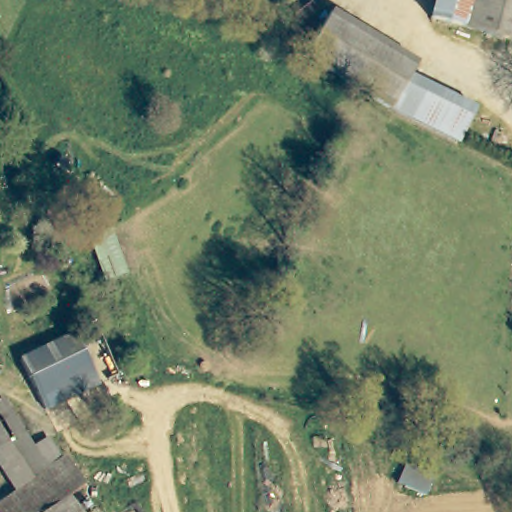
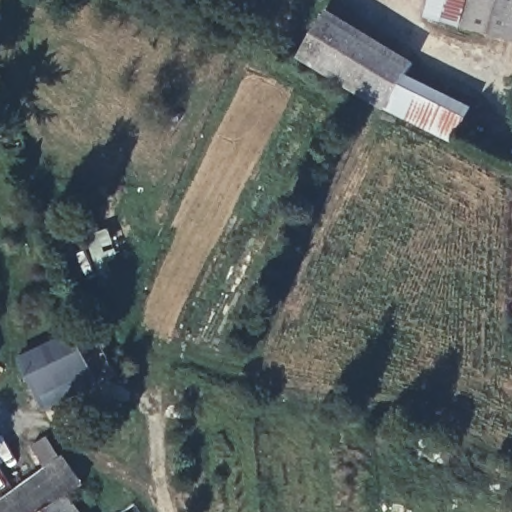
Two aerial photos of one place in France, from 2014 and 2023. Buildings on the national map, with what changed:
unchanged [(433,0),(512,0),(512,38),(429,15),(433,0)]
unchanged [(409,62),(396,84),(381,110),(350,91),(295,58),(323,11),(366,36),(409,62)]
unchanged [(449,144),(381,110),(396,84),(462,117),(449,144)]
unchanged [(68,334),(91,385),(37,411),(14,360),(68,334)]
unchanged [(0,465),(0,398),(5,395),(36,446),(49,437),(60,455),(46,464),(50,469),(15,489),(0,465)]
unchanged [(84,512),(8,512),(1,502),(50,469),(71,455),(88,477),(69,492),(84,512)]

